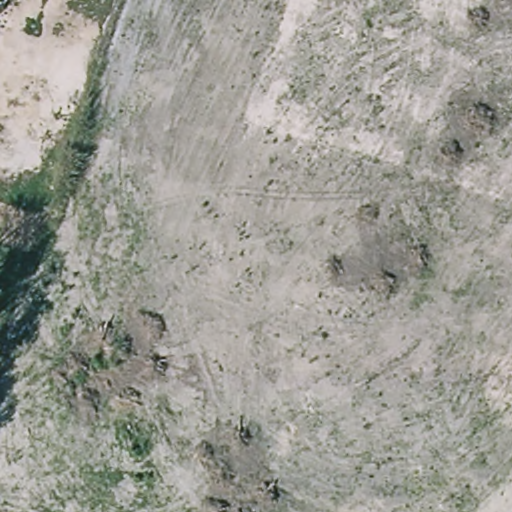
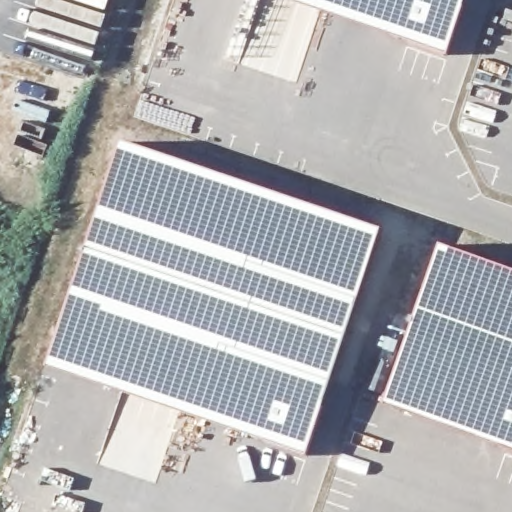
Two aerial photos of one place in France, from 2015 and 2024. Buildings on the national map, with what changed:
new [(294,0),(464,0),(447,52),(294,0)]
new [(381,231),(305,452),(49,366),(124,145),(381,231)]
new [(512,450),(384,403),(441,247),(512,272),(512,450)]

